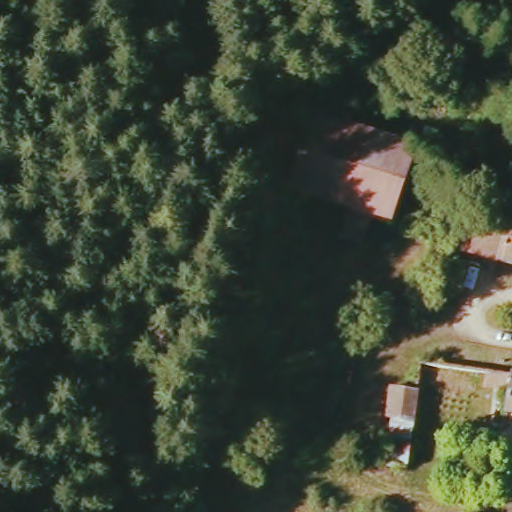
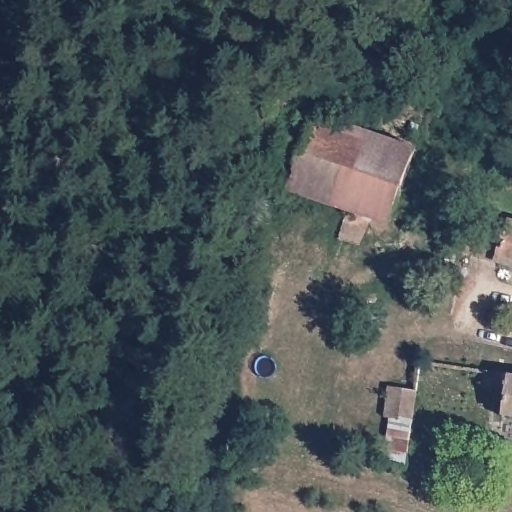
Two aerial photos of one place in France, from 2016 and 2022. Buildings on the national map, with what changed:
unchanged [(418,150),(395,218),(295,186),(323,113),(380,136),(418,150)]
unchanged [(468,250),(484,207),(512,216),(512,265),(468,250)]
unchanged [(498,415),(505,375),(512,376),(512,417),(498,415)]
unchanged [(418,392),(414,423),(408,470),(382,465),(392,420),(385,417),(389,389),(418,392)]

